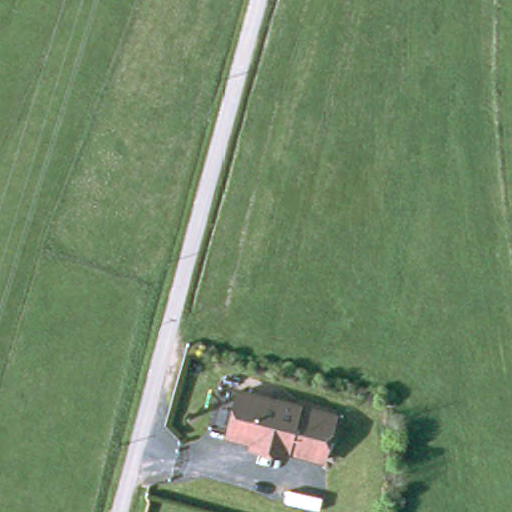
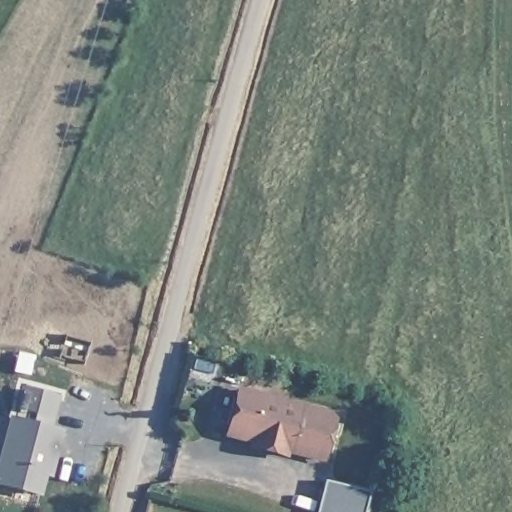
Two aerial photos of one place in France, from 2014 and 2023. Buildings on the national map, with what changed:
new [(21,387),(60,395),(51,427),(62,428),(50,477),(45,476),(40,496),(0,485),(0,450),(8,416),(13,417),(21,387)]
unchanged [(251,446),(228,439),(240,396),(330,421),(318,464),(288,456),(285,462),(263,457),(249,454),(251,446)]

